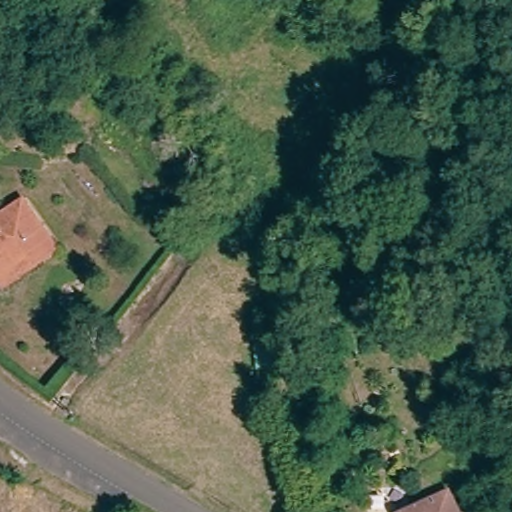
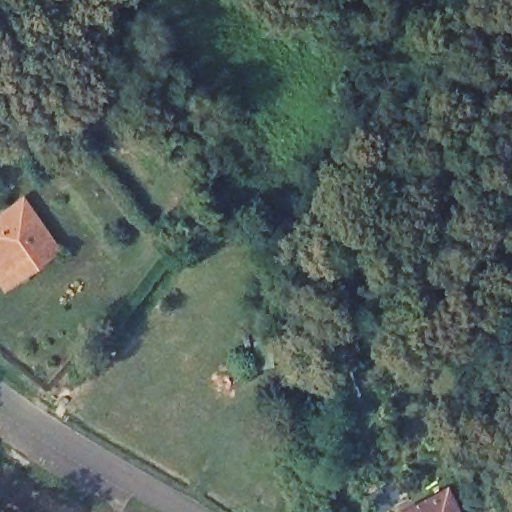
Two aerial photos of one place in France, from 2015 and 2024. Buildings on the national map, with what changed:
unchanged [(6,268),(0,256),(0,213),(30,196),(54,240),(6,268)]
unchanged [(6,268),(54,240),(61,252),(5,286),(0,277),(0,256),(6,268)]
unchanged [(413,512),(453,495),(460,512),(413,512)]

